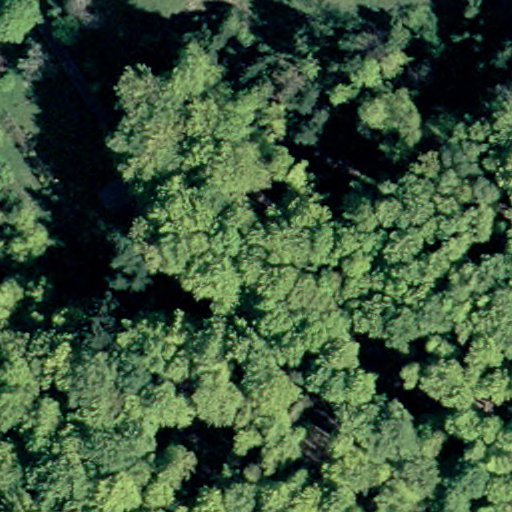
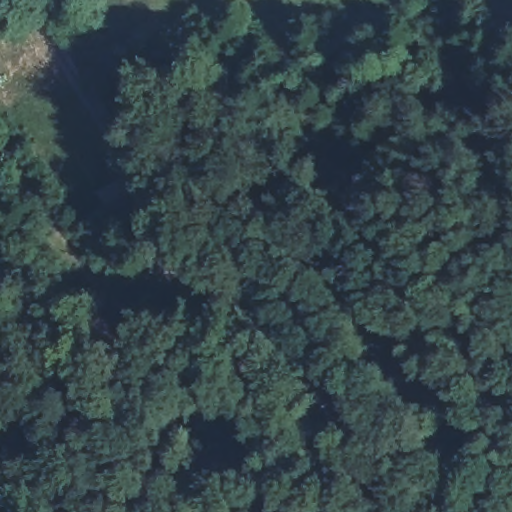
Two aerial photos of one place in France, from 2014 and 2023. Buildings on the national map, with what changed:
unchanged [(122,214),(110,195),(136,181),(147,200),(122,214)]

